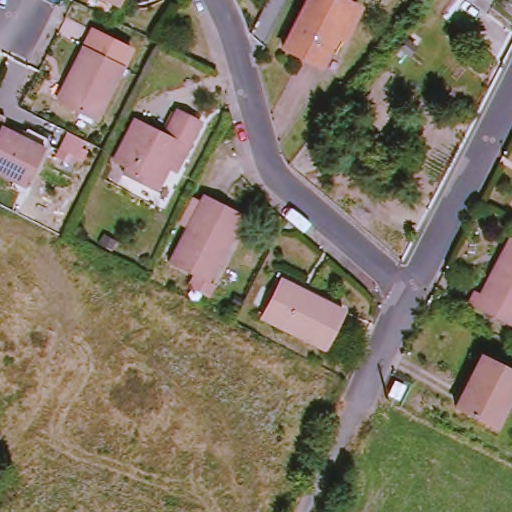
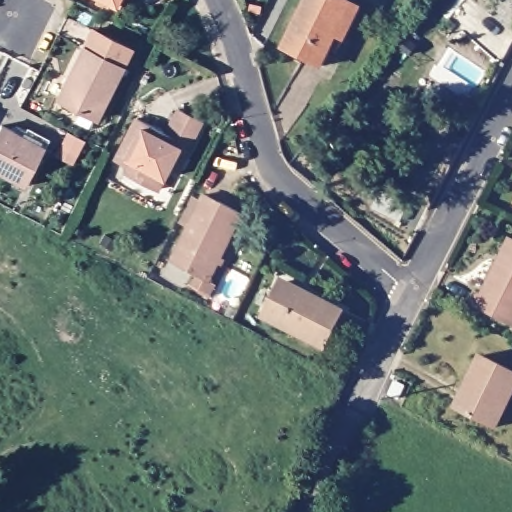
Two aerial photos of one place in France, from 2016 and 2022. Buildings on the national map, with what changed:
unchanged [(128,0),(125,6),(112,0),(128,0)]
unchanged [(315,0),(350,0),(359,4),(328,67),(291,48),(315,0)]
unchanged [(60,100),(93,32),(132,52),(98,119),(60,100)]
unchanged [(129,169),(115,162),(137,118),(168,133),(179,109),(202,121),(184,157),(177,172),(171,169),(159,191),(139,181),(126,175),(129,169)]
unchanged [(0,141),(7,127),(51,148),(31,187),(0,172),(0,141)]
unchanged [(173,263),(206,196),(243,216),(210,282),(173,263)]
unchanged [(471,304),(477,291),(484,295),(512,239),(512,325),(471,304)]
unchanged [(264,318),(281,284),(310,299),(311,296),(344,311),(324,349),(264,318)]
unchanged [(458,407),(483,357),(512,371),(512,399),(498,427),(458,407)]
unchanged [(391,395),(397,381),(406,385),(400,399),(391,395)]

